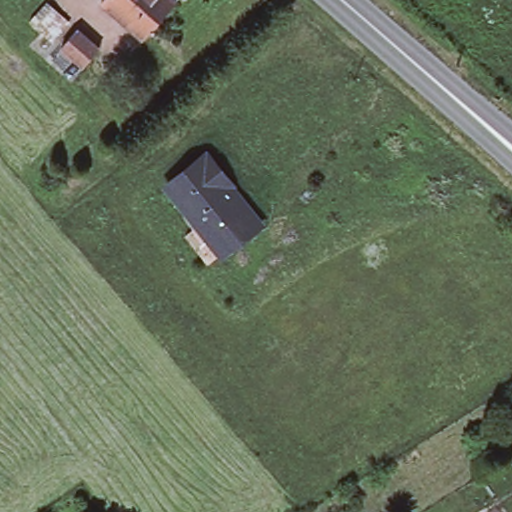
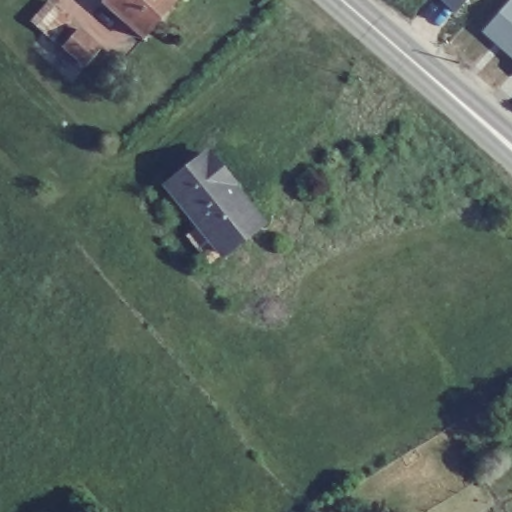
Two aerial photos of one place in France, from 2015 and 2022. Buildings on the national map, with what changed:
unchanged [(101,48),(78,69),(27,24),(51,0),(52,0),(101,48)]
unchanged [(142,38),(100,1),(101,0),(174,0),(142,38)]
new [(509,0),(512,0),(512,59),(481,31),(509,0)]
unchanged [(200,149),(225,180),(220,184),(250,220),(213,250),(159,182),(200,149)]

